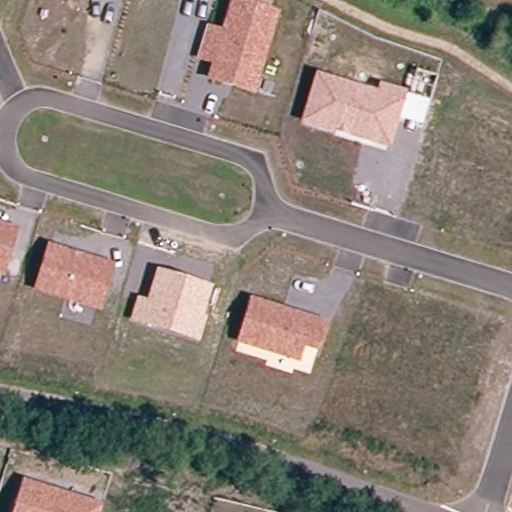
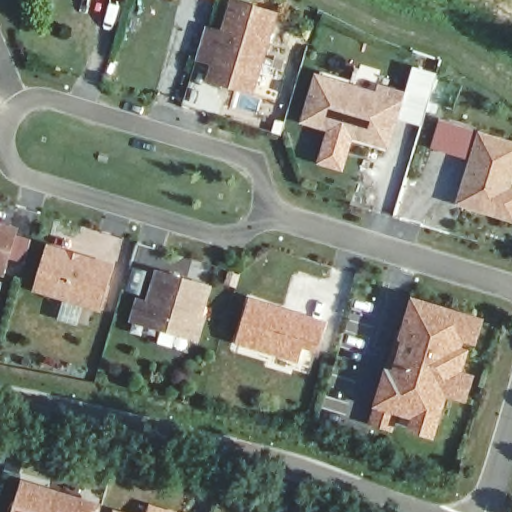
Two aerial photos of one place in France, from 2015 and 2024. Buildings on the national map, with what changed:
unchanged [(278,10),(254,94),(205,80),(210,63),(197,59),(207,25),(220,29),(228,0),(238,0),(278,10)]
new [(407,90),(414,65),(439,72),(424,126),(399,118),(407,90)]
unchanged [(376,91),(378,82),(407,90),(390,148),(299,123),(315,72),(376,91)]
new [(512,140),(512,188),(512,221),(455,204),(469,158),(431,145),(440,117),(479,129),(512,140)]
unchanged [(4,277),(0,276),(0,221),(19,226),(4,277)]
unchanged [(48,243),(115,262),(100,312),(33,291),(48,243)]
unchanged [(136,298),(146,301),(158,268),(210,286),(201,315),(207,317),(199,344),(130,320),(136,298)]
unchanged [(249,296),(327,320),(317,352),(304,348),(299,362),(235,343),(249,296)]
new [(407,433),(411,420),(398,416),(394,432),(371,425),(374,407),(385,367),(398,332),(403,329),(412,296),(484,319),(477,347),(473,346),(465,372),(474,375),(467,404),(449,399),(436,441),(407,433)]
unchanged [(101,512),(13,512),(23,479),(103,503),(101,512)]
new [(177,512),(145,512),(149,503),(177,512)]
new [(126,512),(111,512),(113,508),(126,512)]

